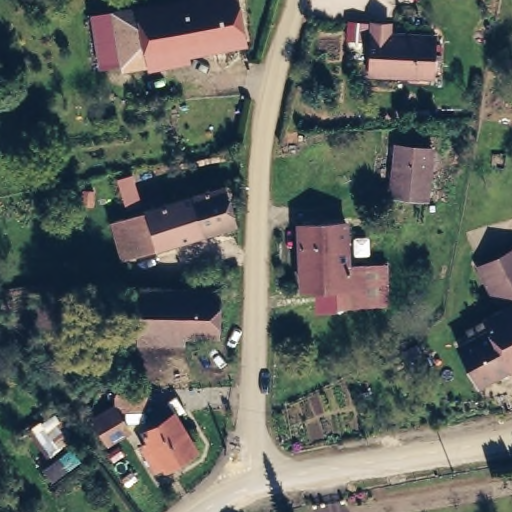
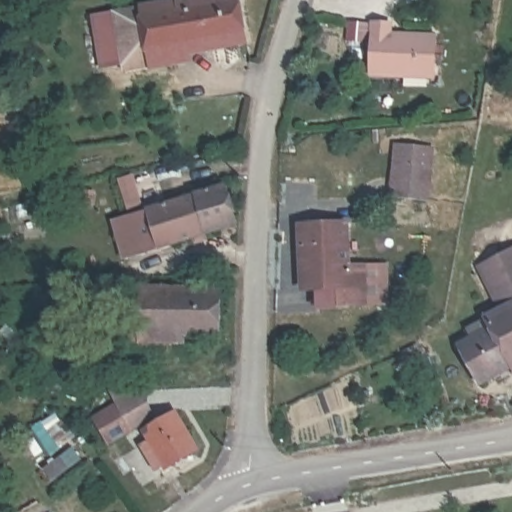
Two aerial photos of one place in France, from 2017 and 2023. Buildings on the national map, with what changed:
unchanged [(158,0),(245,0),(255,48),(121,70),(120,64),(108,11),(158,0)]
unchanged [(120,64),(101,68),(90,14),(108,11),(120,64)]
unchanged [(390,26),(390,34),(436,37),(434,76),(400,74),(400,79),(370,78),(372,25),(390,26)]
unchanged [(450,143),(450,201),(432,202),(432,144),(450,143)]
unchanged [(432,144),(432,202),(396,202),(395,145),(432,144)]
unchanged [(207,190),(216,223),(122,254),(111,220),(207,190)]
unchanged [(346,227),(349,269),(391,268),(390,307),(352,309),(319,311),(317,293),(303,294),(298,231),(346,227)]
unchanged [(479,392),(455,344),(471,338),(466,324),(500,306),(479,267),(512,249),(512,383),(509,376),(479,392)]
unchanged [(222,286),(220,328),(142,325),(143,283),(222,286)]
unchanged [(115,394),(146,391),(148,407),(119,411),(126,426),(104,435),(94,412),(116,403),(115,394)]
unchanged [(155,447),(150,436),(183,420),(202,458),(170,475),(167,472),(157,476),(145,451),(155,447)]

